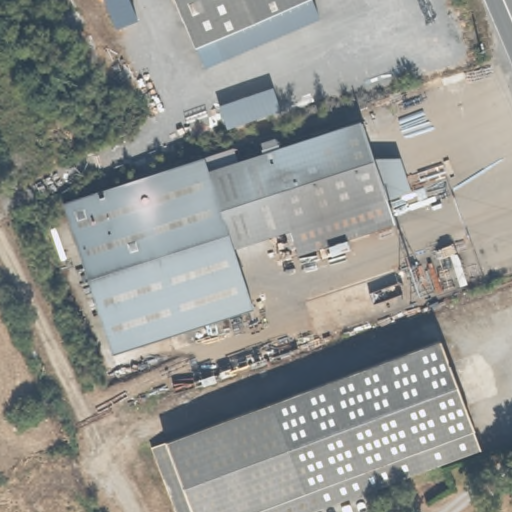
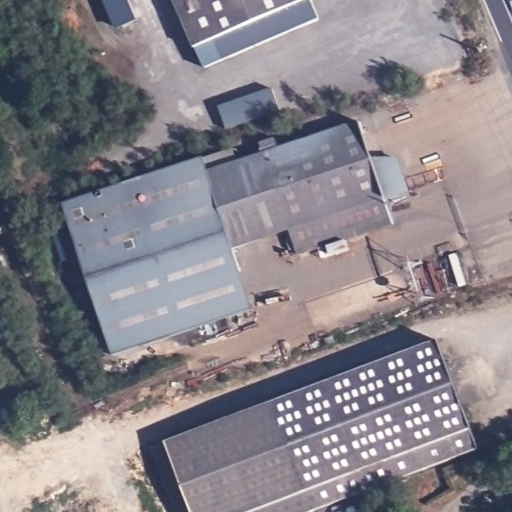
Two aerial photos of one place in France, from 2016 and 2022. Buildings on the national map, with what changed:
unchanged [(174,0),(296,0),(197,49),(174,0)]
unchanged [(119,357),(109,332),(61,204),(227,150),(232,162),(353,119),(370,162),(392,154),(405,186),(382,195),(391,219),(301,252),(290,230),(236,249),(250,287),(258,310),(119,357)]
unchanged [(483,451),(317,512),(174,512),(150,448),(442,343),(483,451)]

